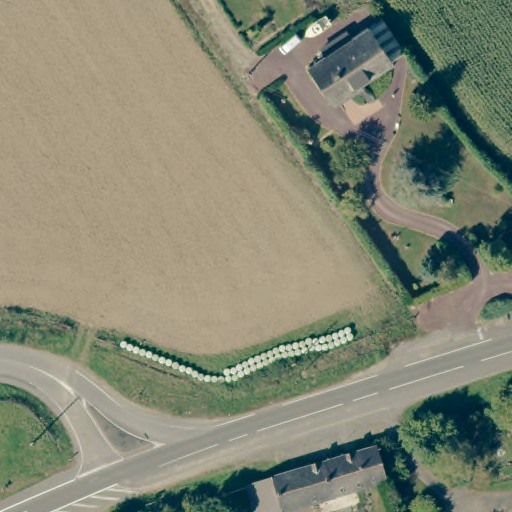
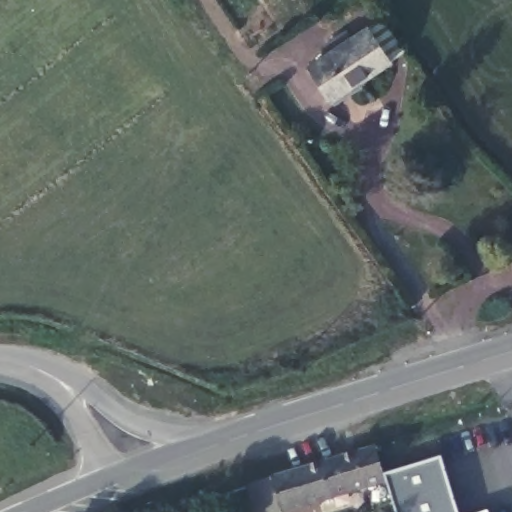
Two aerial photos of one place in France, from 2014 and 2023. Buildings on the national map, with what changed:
unchanged [(391,61),(334,101),(311,67),(368,27),(391,61)]
unchanged [(292,512),(258,512),(250,486),(377,447),(387,482),(292,512)]
new [(387,482),(385,474),(440,459),(457,512),(394,512),(385,483),(387,482)]
demolished [(432,512),(410,512),(431,508),(432,512)]

